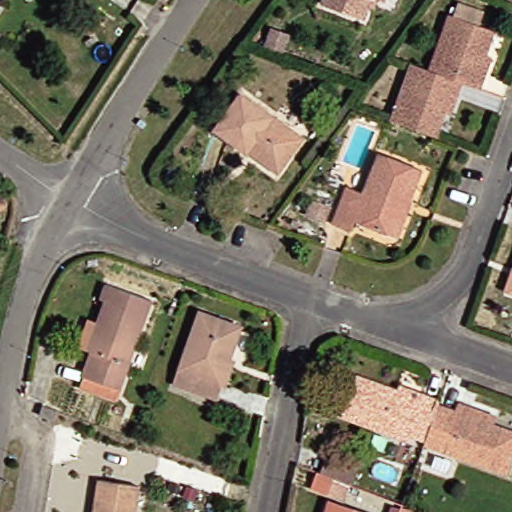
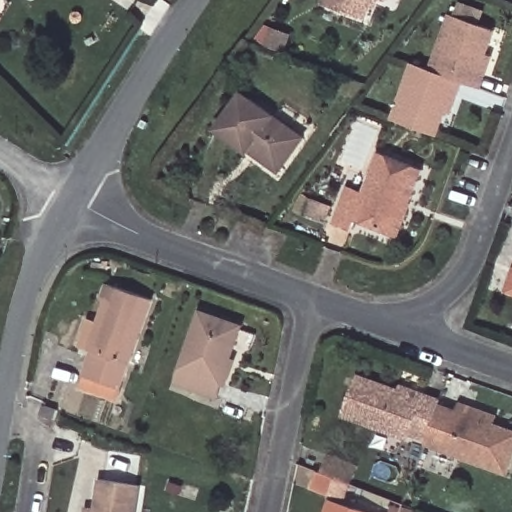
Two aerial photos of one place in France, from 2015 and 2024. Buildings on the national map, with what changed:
unchanged [(375,2),(371,15),(330,0),(379,0),(378,4),(375,2)]
unchanged [(455,15),(499,30),(490,55),(496,56),(484,90),(466,82),(435,71),(455,15)]
unchanged [(435,71),(466,82),(455,115),(449,112),(440,136),(396,121),(417,64),(435,71)]
unchanged [(252,154),(220,130),(246,94),(308,139),(283,172),(260,156),(254,151),(252,154)]
unchanged [(394,234),(359,220),(356,230),(337,224),(351,187),(368,194),(383,154),(427,171),(414,203),(401,236),(394,234)]
unchanged [(102,352),(98,350),(116,301),(112,300),(117,285),(162,300),(129,390),(126,399),(90,386),(93,376),(102,352)]
unchanged [(512,285),(512,290),(510,290),(512,285)]
unchanged [(205,312),(246,326),(221,398),(180,383),(205,312)]
unchanged [(404,386),(428,395),(444,400),(443,405),(430,440),(416,434),(414,440),(348,415),(361,377),(402,392),(404,386)]
unchanged [(502,415),(498,425),(512,431),(512,469),(510,473),(428,445),(430,440),(443,405),(460,411),(463,401),(502,415)]
unchanged [(51,409),(57,411),(54,420),(39,415),(42,406),(51,409)]
unchanged [(322,472),(331,475),(340,479),(334,495),(316,488),(322,472)]
unchanged [(105,480),(143,487),(140,512),(100,512),(101,502),(105,480)]
unchanged [(366,512),(331,512),(334,501),(366,512)]

